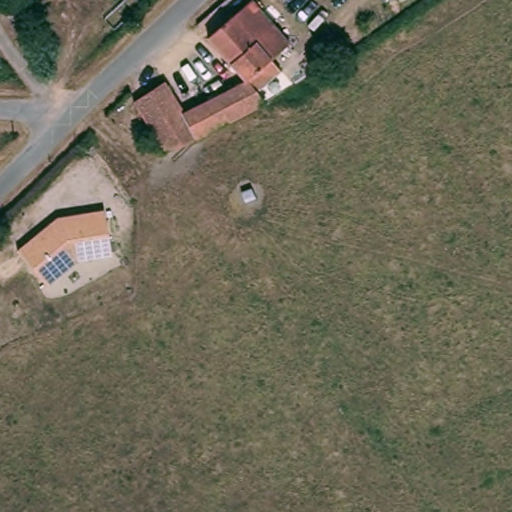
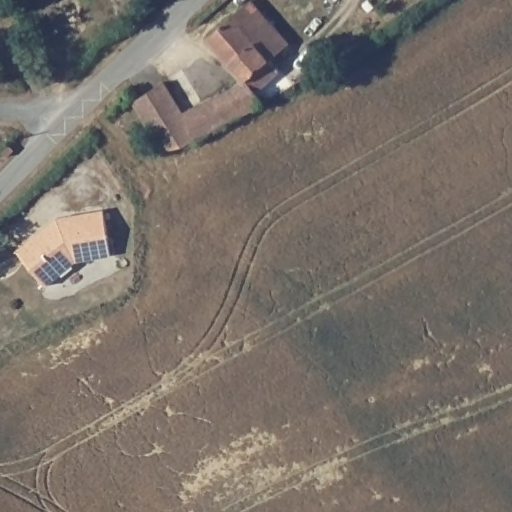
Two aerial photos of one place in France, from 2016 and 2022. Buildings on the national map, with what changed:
unchanged [(245,76),(207,33),(249,0),(255,0),(286,37),(274,56),(278,63),(259,91),(267,99),(196,140),(185,105),(245,76)]
unchanged [(163,153),(130,101),(166,77),(185,105),(196,140),(163,153)]
unchanged [(106,252),(71,260),(42,285),(11,250),(49,216),(61,214),(96,207),(106,252)]

